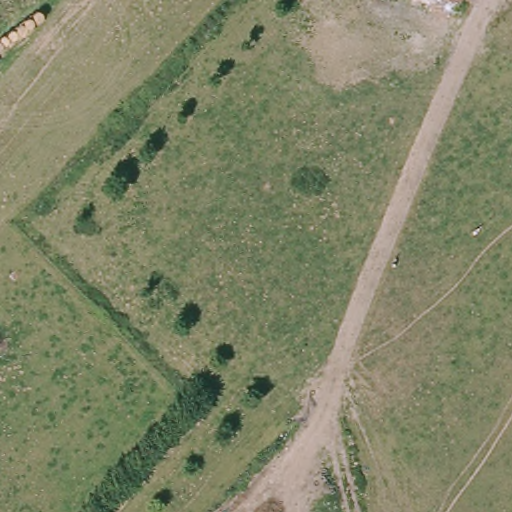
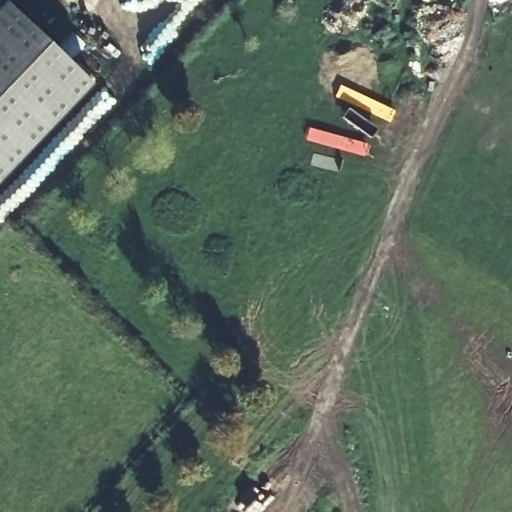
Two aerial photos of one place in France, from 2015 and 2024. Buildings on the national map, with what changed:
new [(95,83),(0,183),(0,8),(7,0),(95,83)]

